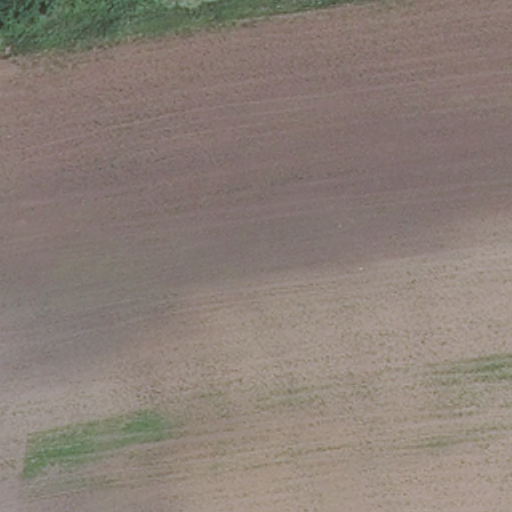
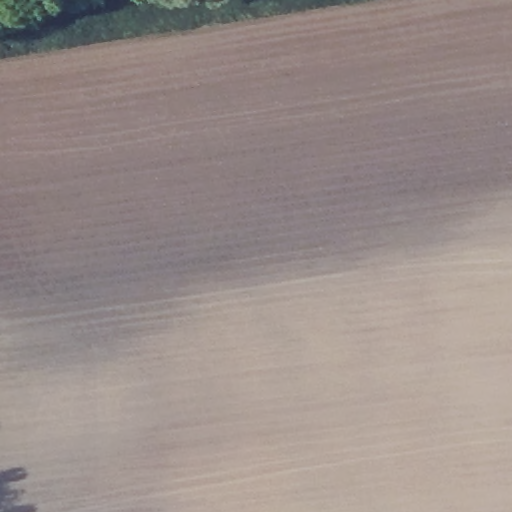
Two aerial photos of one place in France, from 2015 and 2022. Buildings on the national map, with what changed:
[]

